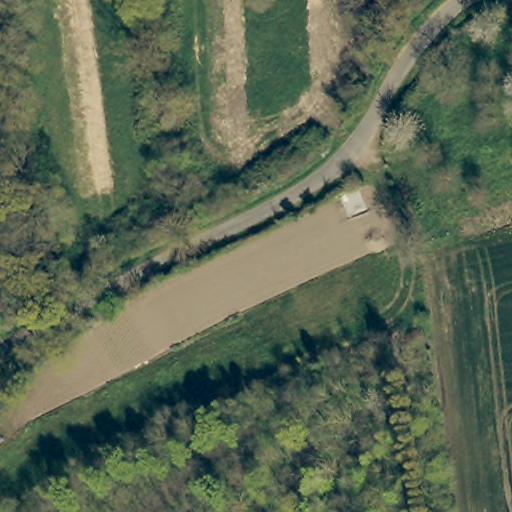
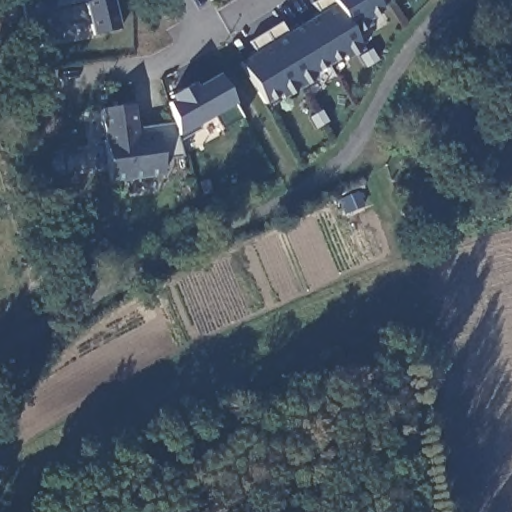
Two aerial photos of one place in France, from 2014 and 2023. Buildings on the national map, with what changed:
new [(54,6),(62,40),(31,47),(20,0),(78,0),(54,6)]
new [(92,35),(84,0),(112,0),(119,30),(92,35)]
new [(383,24),(352,40),(335,6),(331,0),(372,0),(383,24)]
new [(352,40),(359,54),(345,62),(342,56),(312,74),(316,80),(266,109),(240,63),(256,53),(247,42),(280,22),(287,32),(335,6),(352,40)]
new [(371,51),(378,62),(373,66),(367,69),(360,59),(366,55),(371,51)]
new [(233,105),(239,120),(220,130),(212,117),(199,125),(200,130),(177,143),(181,157),(160,160),(162,177),(107,184),(98,108),(133,105),(136,130),(170,125),(159,105),(169,100),(165,95),(191,80),(194,86),(216,75),(233,105)]
new [(321,112),(327,123),(322,126),(316,130),(310,119),(315,115),(321,112)]

